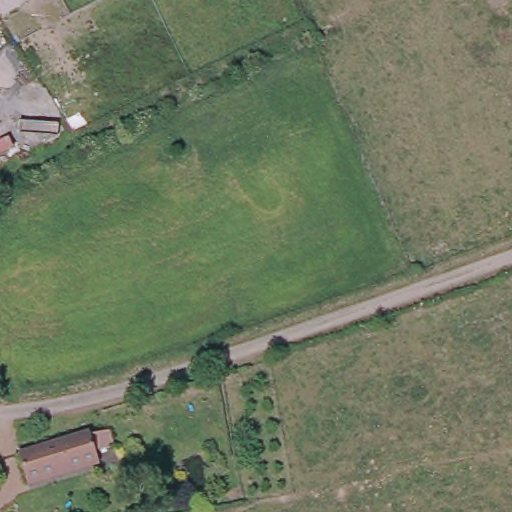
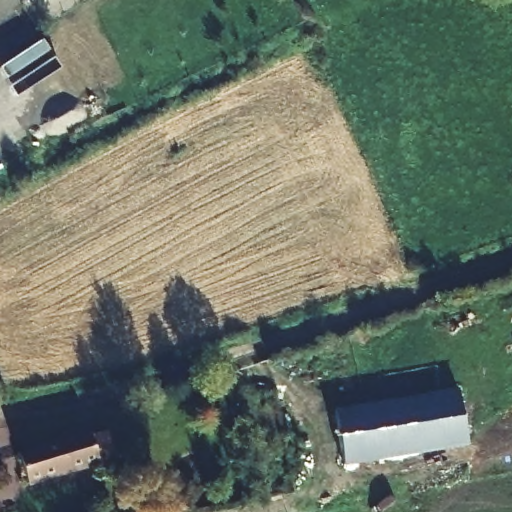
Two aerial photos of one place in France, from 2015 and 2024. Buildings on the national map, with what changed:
new [(335,410),(459,389),(469,447),(344,466),(335,410)]
unchanged [(91,433),(92,435),(110,430),(114,447),(97,452),(100,462),(29,483),(20,455),(91,433)]

